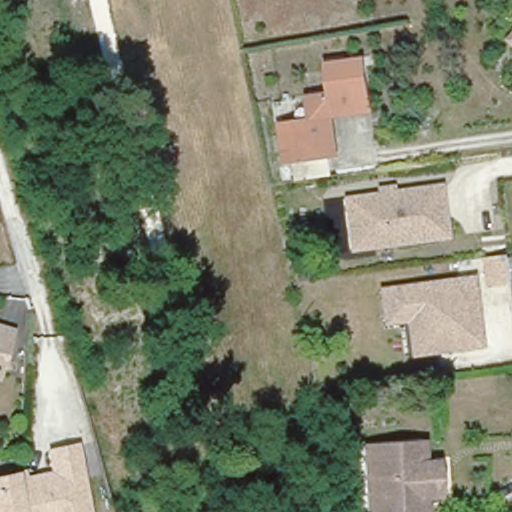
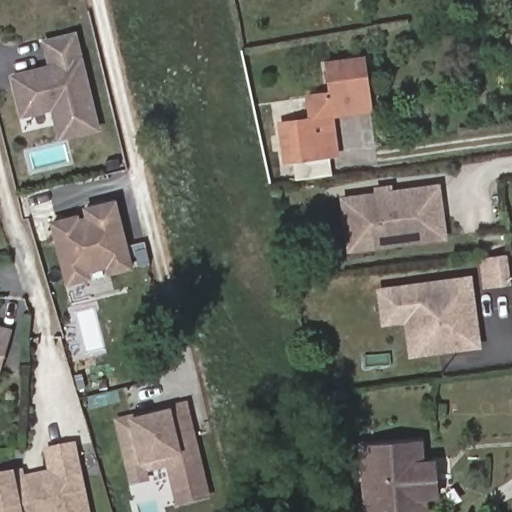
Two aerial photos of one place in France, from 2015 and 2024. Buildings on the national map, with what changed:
new [(77,31),(83,56),(101,131),(58,141),(52,111),(21,119),(10,75),(48,65),(43,39),(77,31)]
unchanged [(512,42),(512,45),(511,44),(512,42)]
unchanged [(334,109),(311,112),(306,95),(328,91),(323,62),(365,53),(375,111),(336,118),(334,109)]
unchanged [(336,118),(343,155),(279,161),(272,120),(311,112),(334,109),(336,118)]
unchanged [(448,240),(348,251),(341,196),(439,181),(448,240)]
new [(51,221),(79,213),(80,217),(86,216),(85,207),(116,199),(135,270),(109,275),(107,268),(91,272),(92,279),(68,285),(51,221)]
unchanged [(488,288),(483,256),(508,253),(512,280),(512,286),(488,288)]
unchanged [(331,279),(295,286),(295,282),(291,263),(327,256),(334,254),(337,272),(330,273),(331,277),(331,279)]
unchanged [(482,347),(407,357),(404,326),(380,327),(375,287),(472,274),(482,347)]
unchanged [(0,370),(0,323),(15,327),(0,370)]
new [(149,473),(151,482),(131,487),(114,420),(188,402),(211,498),(176,507),(167,468),(149,473)]
unchanged [(425,461),(434,459),(437,505),(429,505),(429,512),(363,512),(355,445),(423,439),(425,461)]
unchanged [(0,512),(0,474),(24,469),(26,472),(48,470),(44,446),(77,440),(91,512),(0,512)]

